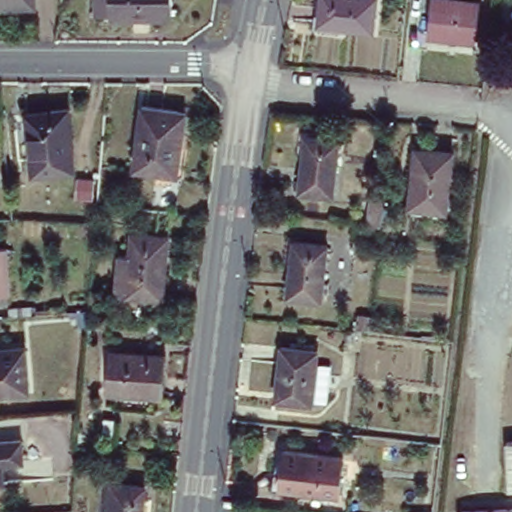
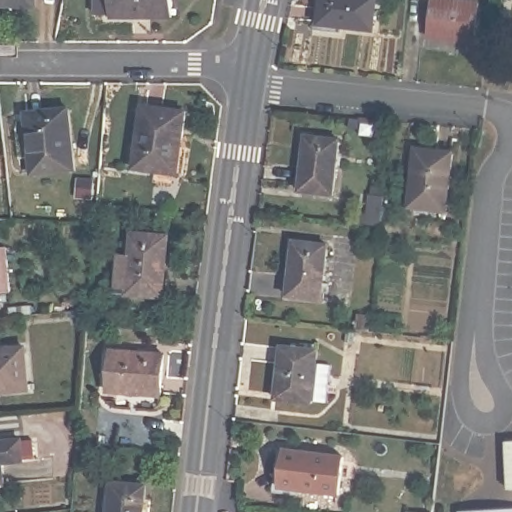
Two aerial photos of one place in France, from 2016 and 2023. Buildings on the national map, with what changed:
unchanged [(39,3),(0,2),(0,0),(39,0),(39,3)]
unchanged [(110,0),(178,0),(178,9),(109,9),(110,0)]
unchanged [(378,25),(324,19),(326,0),(380,0),(378,25)]
unchanged [(479,2),(477,41),(430,38),(433,0),(442,0),(479,2)]
unchanged [(497,55),(506,56),(506,69),(496,68),(497,55)]
unchanged [(184,105),(180,143),(186,144),(183,170),(138,164),(145,101),(184,105)]
unchanged [(69,110),(74,171),(33,175),(26,114),(69,110)]
unchanged [(346,139),(340,193),(305,191),(312,135),(346,139)]
unchanged [(458,146),(452,206),(415,202),(421,142),(458,146)]
unchanged [(372,195),(386,196),(382,226),(369,224),(372,195)]
unchanged [(170,235),(166,294),(118,292),(120,254),(134,254),(134,233),(170,235)]
unchanged [(329,239),(322,295),(289,291),(295,237),(329,239)]
unchanged [(9,287),(0,288),(0,244),(6,243),(9,287)]
unchanged [(323,345),(317,398),(282,394),(288,341),(323,345)]
unchanged [(33,385),(2,387),(3,400),(0,400),(0,347),(29,344),(33,385)]
unchanged [(163,354),(160,395),(109,390),(110,350),(163,354)]
unchanged [(26,456),(5,459),(6,478),(0,479),(0,439),(25,436),(26,456)]
unchanged [(509,487),(507,436),(512,436),(512,488),(509,487)]
unchanged [(344,452),(339,489),(281,482),(286,445),(344,452)]
unchanged [(145,512),(111,512),(114,477),(148,481),(145,512)]
unchanged [(481,512),(512,510),(512,512),(481,512)]
unchanged [(417,512),(409,512),(409,511),(417,512)]

